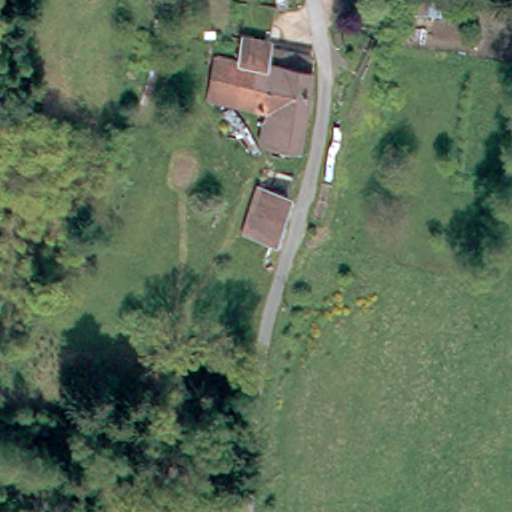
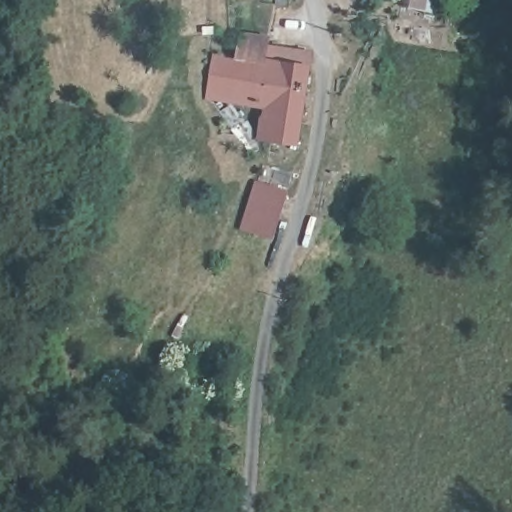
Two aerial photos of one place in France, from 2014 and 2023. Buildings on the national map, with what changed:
unchanged [(262,116),(264,102),(209,92),(211,81),(215,50),(238,54),(244,27),(270,31),(266,55),(312,63),(301,140),(266,136),(259,135),(262,116)]
unchanged [(244,228),(258,183),(289,194),(274,237),(244,228)]

